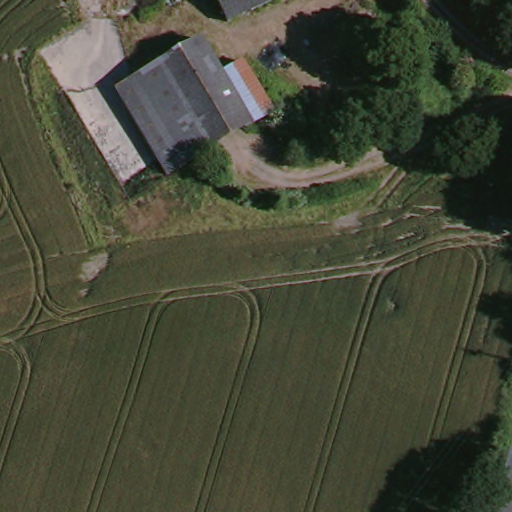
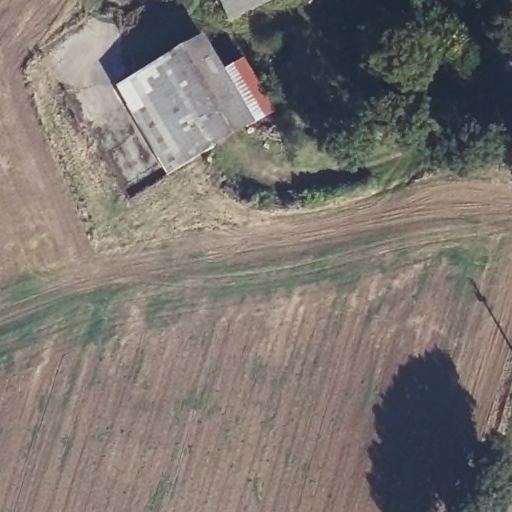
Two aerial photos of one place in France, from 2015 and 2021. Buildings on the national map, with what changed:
unchanged [(222,20),(212,0),(272,0),(222,20)]
unchanged [(194,48),(212,79),(240,64),(270,117),(177,169),(166,176),(119,92),(126,87),(194,48)]

